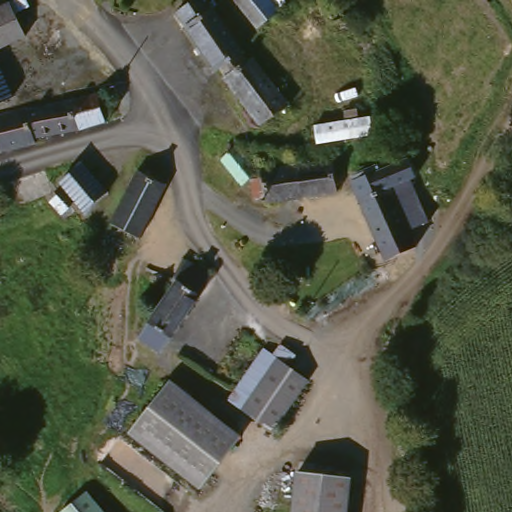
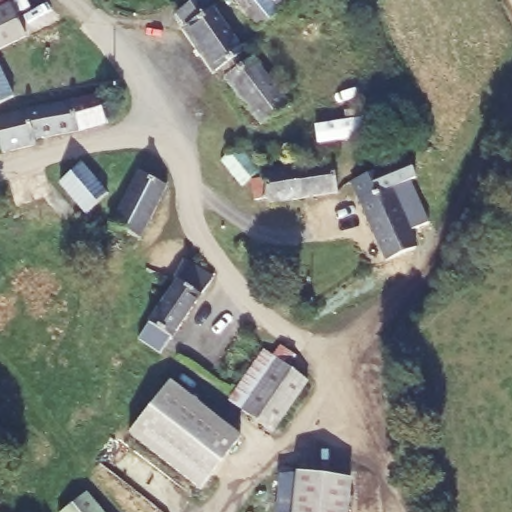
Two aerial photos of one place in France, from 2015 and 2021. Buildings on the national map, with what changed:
unchanged [(21,0),(29,15),(14,21),(19,42),(0,54),(0,6),(21,0)]
unchanged [(209,74),(207,75),(177,31),(198,16),(192,4),(194,0),(196,0),(204,12),(234,57),(209,74)]
unchanged [(256,30),(232,0),(267,0),(279,14),(256,30)]
unchanged [(246,64),(258,55),(287,95),(275,104),(279,110),(251,130),(209,74),(234,57),(241,67),(246,64)]
unchanged [(9,102),(0,106),(0,80),(9,102)]
unchanged [(111,95),(118,120),(104,124),(106,128),(103,129),(77,136),(69,104),(111,95)]
unchanged [(37,148),(28,112),(69,104),(77,136),(37,148)]
unchanged [(28,112),(37,148),(38,152),(0,162),(0,119),(28,112)]
unchanged [(254,182),(233,156),(249,141),(271,169),(254,182)]
unchanged [(394,188),(387,191),(381,176),(388,170),(403,156),(434,227),(414,236),(394,188)]
unchanged [(343,159),(350,182),(349,190),(314,195),(309,165),(343,159)]
unchanged [(279,201),(273,170),(309,165),(314,195),(279,201)]
unchanged [(106,204),(81,221),(52,181),(73,175),(83,172),(106,204)]
unchanged [(136,245),(109,231),(139,173),(166,187),(136,245)]
unchanged [(422,252),(379,270),(352,206),(387,191),(394,188),(414,236),(422,252)]
unchanged [(178,340),(173,336),(164,352),(141,338),(152,321),(189,260),(217,277),(178,340)]
unchanged [(290,356),(283,366),(304,382),(262,440),(218,409),(261,350),(269,357),(277,347),(290,356)]
unchanged [(227,442),(189,488),(130,441),(167,395),(227,442)]
unchanged [(310,495),(347,500),(345,512),(289,512),(292,491),(310,495)]
unchanged [(78,497),(92,512),(63,512),(78,497)]

